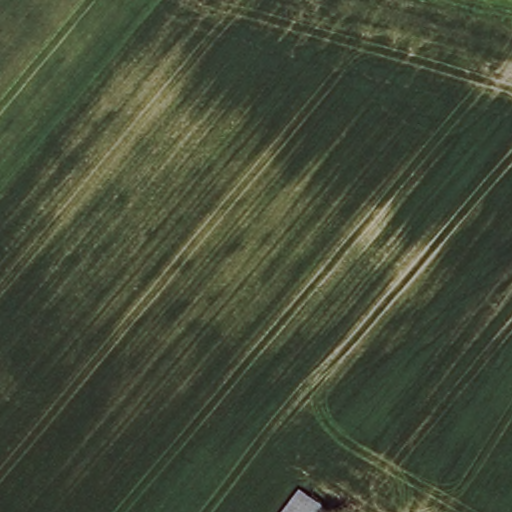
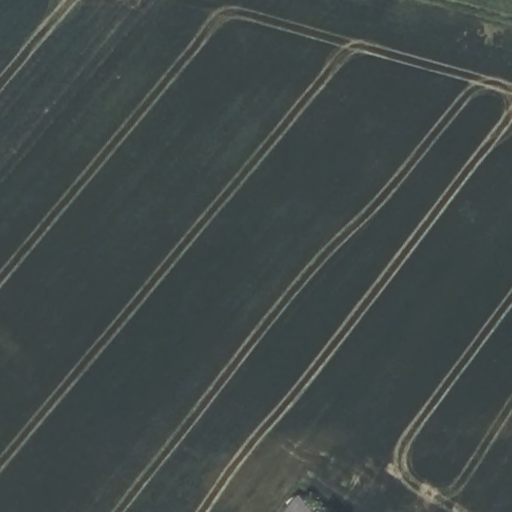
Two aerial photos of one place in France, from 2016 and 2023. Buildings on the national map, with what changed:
unchanged [(297,494),(321,512),(283,512),(297,494)]

